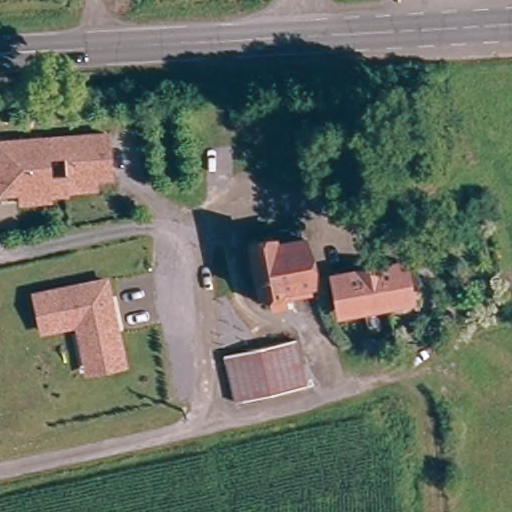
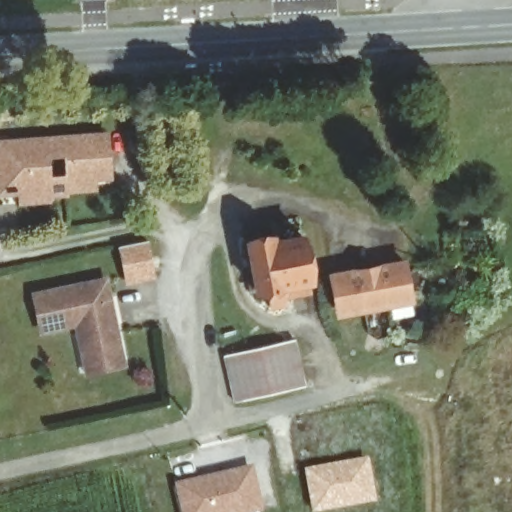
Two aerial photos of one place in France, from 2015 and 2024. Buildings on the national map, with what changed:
unchanged [(348,96),(350,106),(337,106),(337,96),(348,96)]
unchanged [(21,198),(21,187),(0,188),(0,136),(31,135),(66,134),(109,132),(111,152),(111,158),(112,175),(96,175),(96,186),(70,188),(70,190),(69,190),(50,191),(50,197),(21,198)]
unchanged [(278,292),(280,299),(264,302),(260,286),(252,287),(241,237),(266,232),(268,239),(298,233),(307,275),(303,276),(305,287),(278,292)]
unchanged [(339,317),(329,278),(405,262),(414,301),(339,317)]
unchanged [(88,370),(85,350),(79,320),(44,327),(37,291),(109,279),(112,296),(115,312),(120,344),(124,363),(88,370)]
unchanged [(295,347),(302,389),(231,400),(228,383),(224,356),(223,353),(271,346),(295,342),(295,347)]
new [(375,503),(322,512),(310,512),(303,468),(367,456),(375,503)]
new [(265,512),(180,512),(173,482),(254,463),(265,512)]

